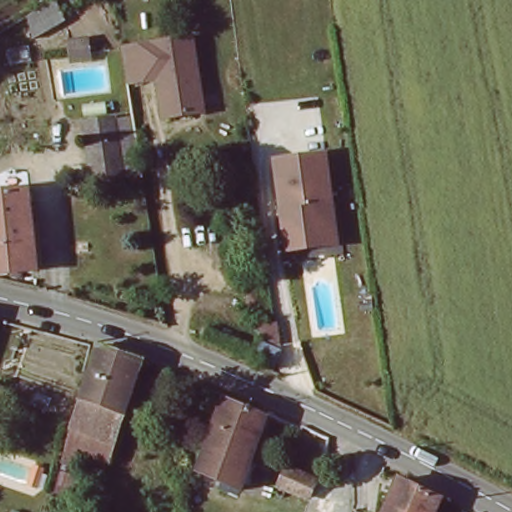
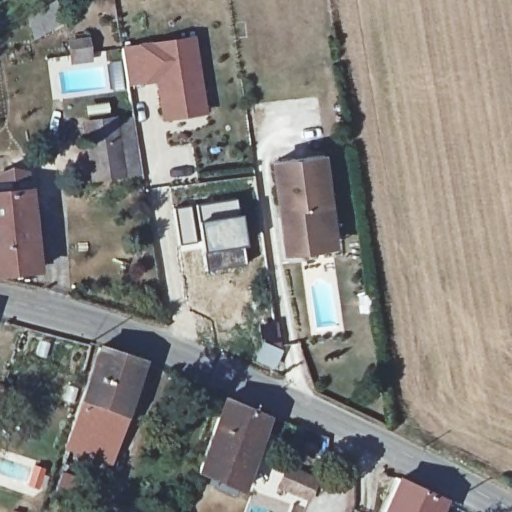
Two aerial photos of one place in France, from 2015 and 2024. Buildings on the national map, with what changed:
unchanged [(17,14),(31,5),(38,0),(45,0),(53,23),(33,31),(23,38),(17,14)]
unchanged [(193,116),(165,120),(159,80),(129,85),(125,56),(124,50),(194,39),(202,93),(205,114),(193,116)]
unchanged [(138,171),(121,174),(92,178),(89,149),(85,122),(114,118),(118,146),(134,145),(138,171)]
unchanged [(334,197),(346,199),(351,248),(287,255),(278,161),(329,155),(334,197)]
unchanged [(163,176),(183,174),(185,185),(164,187),(163,176)]
unchanged [(34,221),(25,222),(10,225),(3,226),(0,226),(0,193),(31,190),(34,221)]
new [(204,274),(199,245),(178,248),(171,207),(194,204),(235,197),(246,267),(204,274)]
unchanged [(25,222),(34,221),(38,274),(0,278),(0,226),(3,226),(10,225),(25,222)]
unchanged [(268,352),(261,369),(251,363),(256,350),(251,330),(264,330),(268,352)]
unchanged [(108,466),(85,458),(79,473),(61,466),(70,432),(99,354),(117,359),(139,368),(108,466)]
unchanged [(269,414),(241,490),(224,484),(219,492),(195,484),(223,394),(269,414)]
unchanged [(322,487),(317,497),(286,483),(290,472),(322,487)]
unchanged [(41,477),(38,492),(27,489),(30,474),(41,477)]
unchanged [(441,499),(436,512),(392,512),(404,485),(441,499)]

